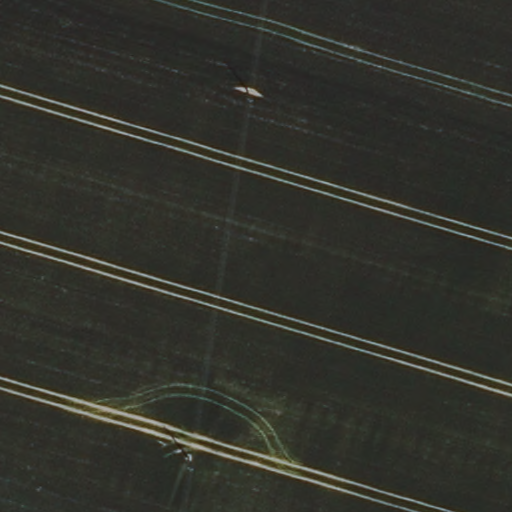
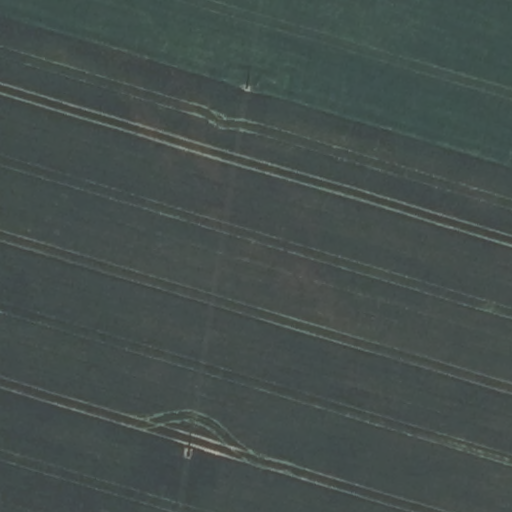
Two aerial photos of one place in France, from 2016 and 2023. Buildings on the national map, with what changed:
[]

